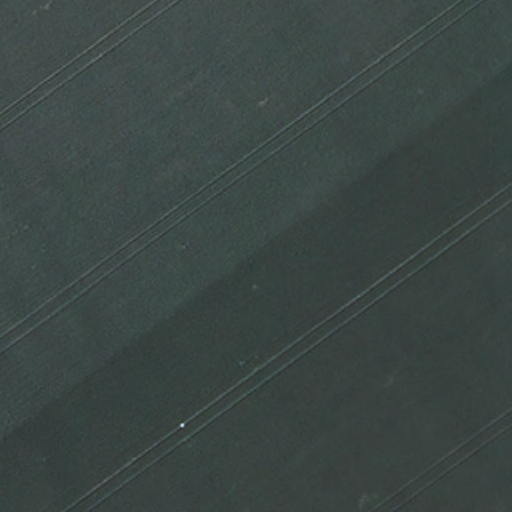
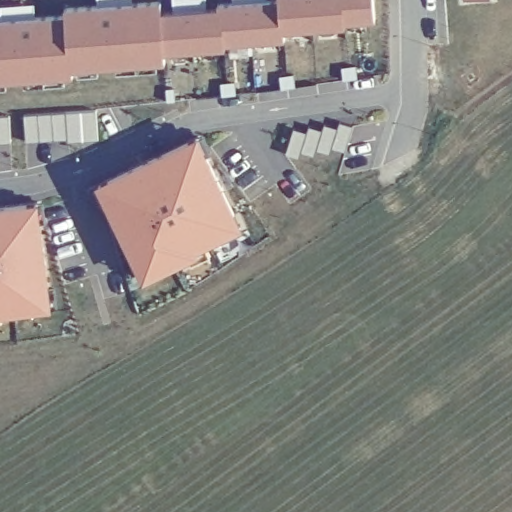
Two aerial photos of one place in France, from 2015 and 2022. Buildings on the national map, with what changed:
new [(3,22),(2,7),(36,5),(37,19),(68,18),(67,10),(99,8),(99,0),(135,0),(136,6),(163,4),(163,15),(176,14),(175,0),(209,0),(210,12),(221,11),(220,3),(235,1),(235,0),(376,0),(377,20),(347,22),(348,26),(272,32),(273,40),(227,44),(228,48),(167,52),(168,63),(159,63),(160,71),(118,74),(118,66),(100,67),(101,75),(80,77),(80,69),(75,69),(75,76),(67,77),(67,85),(26,88),(26,80),(8,81),(9,89),(0,90),(0,22),(3,22)]
new [(12,114),(13,141),(0,142),(0,115),(12,114)]
new [(311,125),(324,129),(326,123),(340,127),(342,121),(355,125),(347,151),(334,147),(332,153),(318,149),(316,156),(303,152),(301,158),(288,153),(296,128),(309,131),(311,125)]
new [(108,200),(101,204),(92,185),(206,132),(214,152),(208,154),(242,232),(225,239),(223,234),(206,243),(211,253),(192,262),(188,256),(165,268),(167,273),(144,281),(108,200)]
new [(40,202),(50,291),(33,293),(34,308),(0,311),(0,207),(40,202)]

